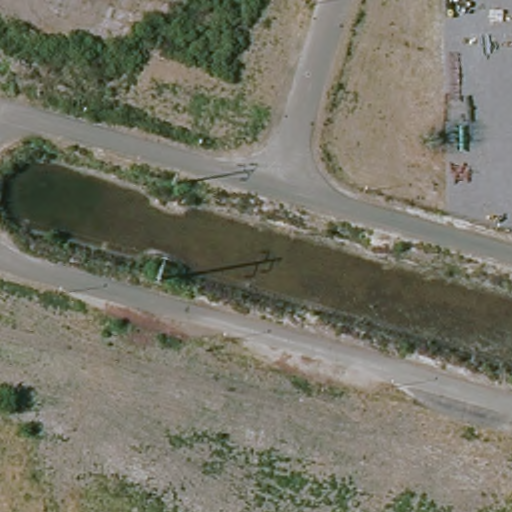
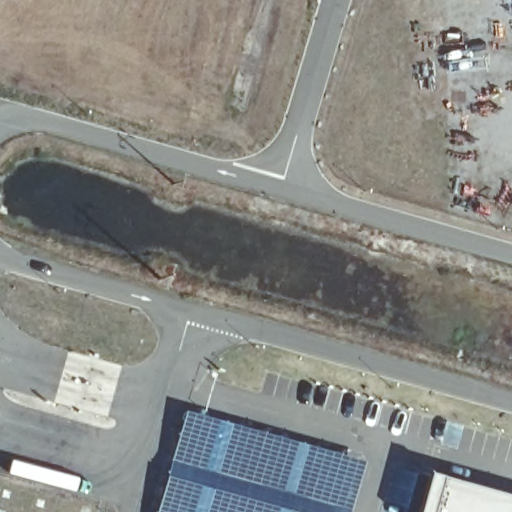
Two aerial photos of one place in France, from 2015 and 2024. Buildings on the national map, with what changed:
new [(183,411),(365,462),(350,512),(155,512),(183,411)]
new [(441,478),(512,498),(512,512),(419,512),(429,476),(441,478)]

